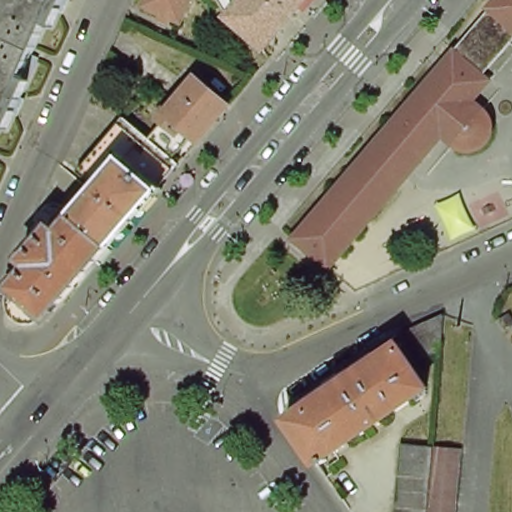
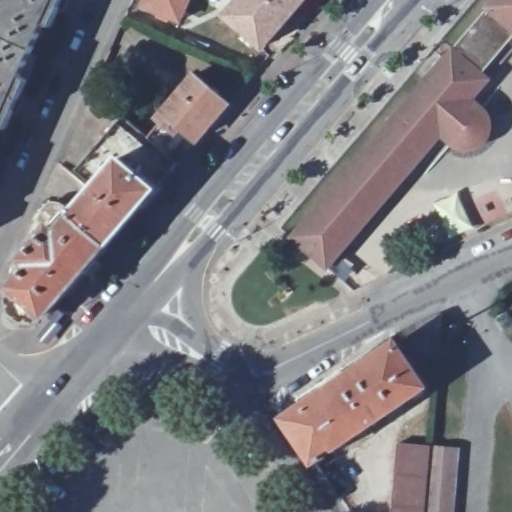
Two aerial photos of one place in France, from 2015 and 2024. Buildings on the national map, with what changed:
unchanged [(52,27),(45,24),(32,54),(39,57),(28,80),(7,130),(0,127),(0,11),(5,0),(64,0),(52,27)]
unchanged [(143,5),(145,0),(191,0),(181,22),(143,5)]
unchanged [(240,0),(300,0),(275,29),(278,31),(263,49),(226,16),(240,0)]
unchanged [(454,44),(455,45),(490,4),(489,3),(492,0),(512,0),(512,33),(482,69),(490,75),(472,95),(485,107),(490,115),(490,122),(487,134),(481,140),(472,145),(462,145),(453,140),(442,130),(328,263),(292,233),(454,44)]
unchanged [(175,131),(174,132),(159,119),(196,76),(229,105),(197,142),(187,133),(182,138),(175,131)]
unchanged [(113,240),(81,212),(77,209),(100,182),(80,165),(128,112),(183,159),(113,240)]
unchanged [(50,313),(48,312),(45,315),(40,316),(35,317),(24,315),(21,312),(17,310),(16,307),(14,301),(13,296),(15,290),(17,285),(14,282),(33,240),(38,227),(47,207),(48,205),(52,201),(57,199),(65,199),(69,201),(77,209),(81,212),(113,240),(57,305),(50,313)]
unchanged [(440,350),(416,360),(398,333),(442,314),(442,317),(440,350)]
unchanged [(303,406),(298,400),(392,336),(427,387),(423,390),(426,394),(416,401),(413,396),(314,463),(285,419),(303,406)]
unchanged [(432,446),(426,512),(394,512),(400,443),(432,446)]
unchanged [(455,512),(426,512),(432,446),(460,449),(455,512)]

